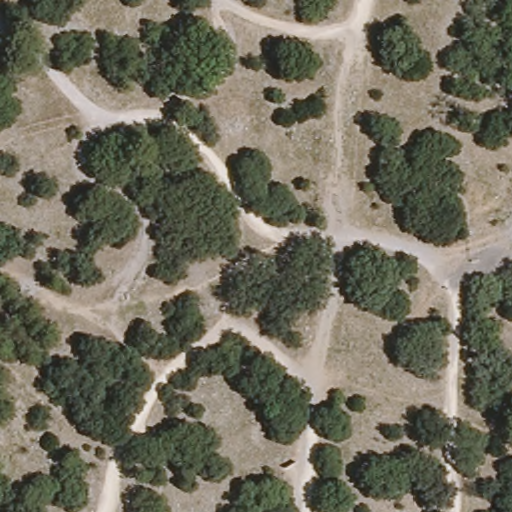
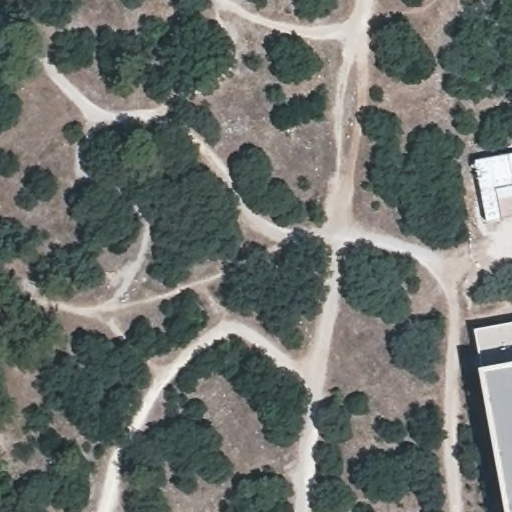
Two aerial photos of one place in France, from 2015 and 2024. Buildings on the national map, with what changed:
new [(512,153),(512,196),(500,199),(505,217),(486,221),(474,160),(512,153)]
new [(508,512),(483,370),(477,331),(512,324),(512,512),(508,512)]

